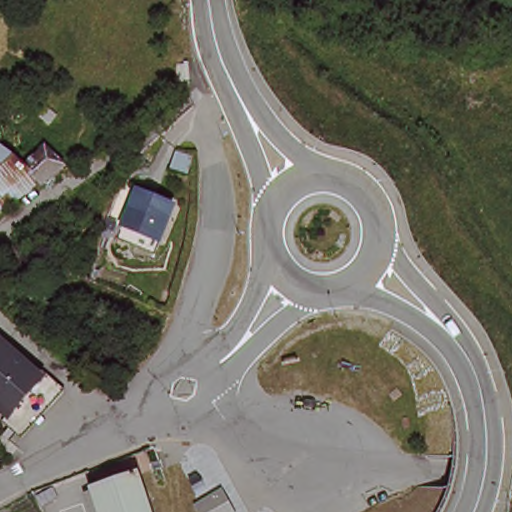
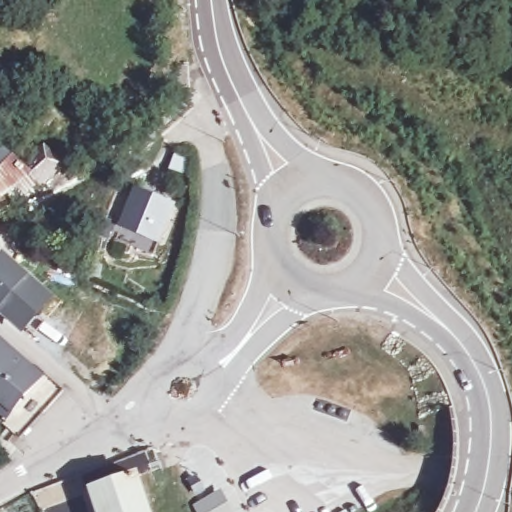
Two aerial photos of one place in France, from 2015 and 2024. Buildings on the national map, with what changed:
unchanged [(2,212),(0,211),(0,158),(25,175),(47,154),(70,169),(45,189),(38,184),(2,212)]
unchanged [(123,225),(139,191),(175,207),(158,241),(152,254),(117,238),(123,225)]
unchanged [(2,212),(0,214),(0,211),(2,212)]
new [(9,253),(57,297),(21,333),(0,314),(0,262),(9,253)]
unchanged [(40,381),(43,378),(60,396),(15,443),(3,418),(0,416),(0,344),(40,381)]
unchanged [(97,498),(94,488),(140,472),(150,508),(152,512),(93,512),(89,500),(97,498)]
unchanged [(195,512),(192,508),(222,491),(233,512),(195,512)]

